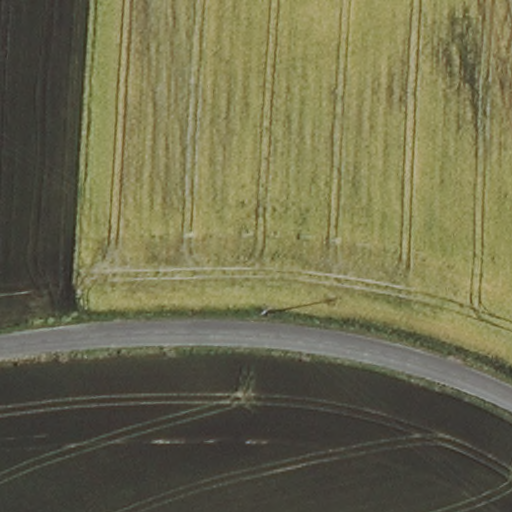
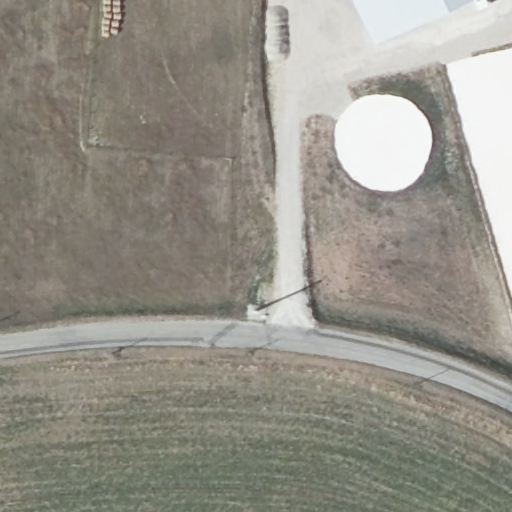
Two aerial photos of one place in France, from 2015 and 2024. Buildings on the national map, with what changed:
new [(371,42),(351,0),(464,0),(371,42)]

